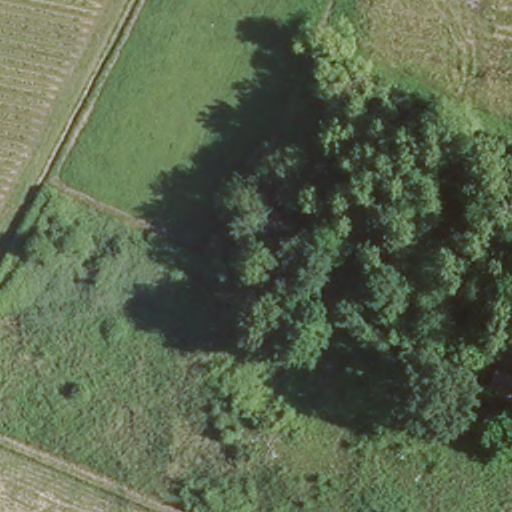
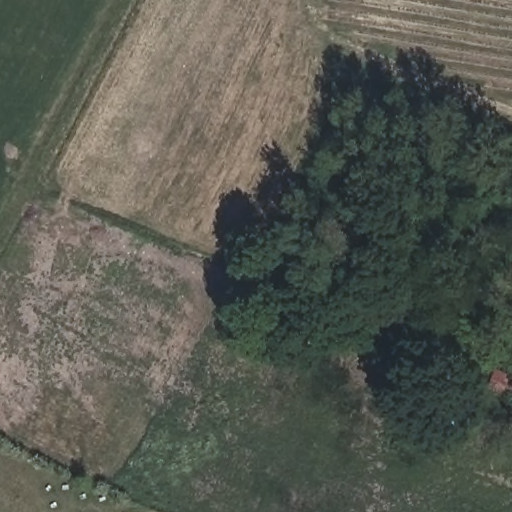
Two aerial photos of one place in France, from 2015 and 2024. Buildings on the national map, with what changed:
unchanged [(475,395),(480,382),(498,389),(494,402),(475,395)]

